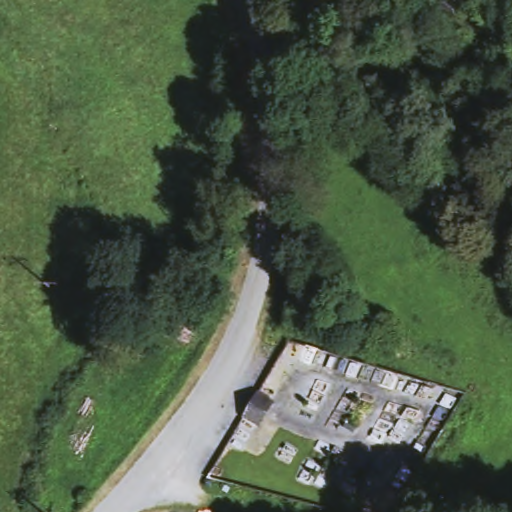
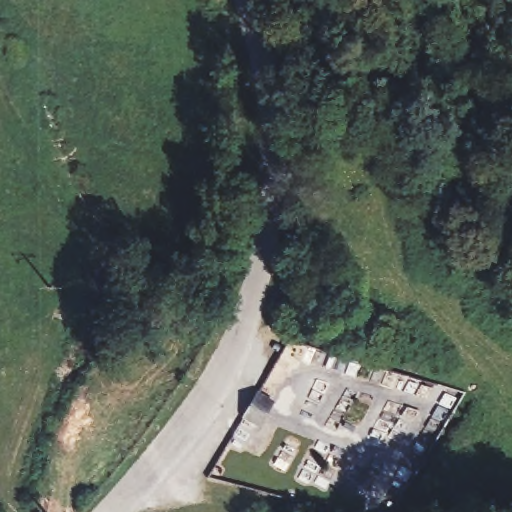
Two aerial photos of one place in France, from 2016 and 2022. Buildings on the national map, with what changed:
unchanged [(270,395),(274,397),(259,423),(245,414),(260,389),(270,395)]

